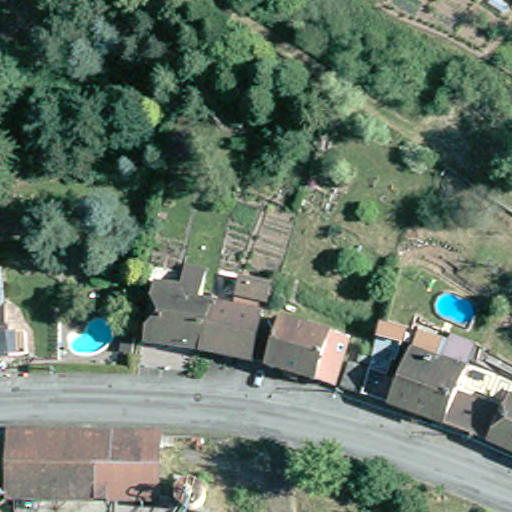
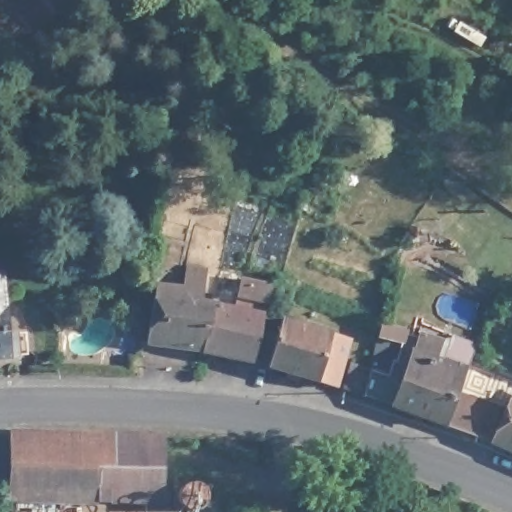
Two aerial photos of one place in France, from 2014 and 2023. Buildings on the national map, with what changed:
unchanged [(1,272),(5,334),(25,333),(27,354),(7,356),(0,357),(0,272),(1,272)]
unchanged [(239,283),(256,287),(258,278),(274,280),(261,356),(208,348),(208,345),(214,298),(236,301),(239,283)]
unchanged [(154,337),(161,281),(204,288),(203,296),(214,298),(208,345),(154,337)]
unchanged [(289,315),(354,334),(341,380),(264,357),(272,327),(284,330),(289,315)]
unchanged [(477,434),(464,429),(409,410),(397,406),(379,399),(364,394),(366,388),(372,371),(386,375),(387,371),(394,341),(419,350),(429,354),(450,362),(448,368),(454,370),(462,350),(487,359),(474,396),(485,400),(501,407),(512,411),(512,450),(487,439),(477,434)]
unchanged [(17,436),(165,437),(164,501),(18,497),(17,436)]
unchanged [(180,503),(178,499),(178,495),(179,491),(181,487),(183,484),(186,482),(190,480),(194,480),(198,481),(199,481),(203,483),(206,486),(208,489),(208,493),(208,497),(208,501),(206,504),(203,507),(199,509),(195,510),(191,510),(188,509),(186,509),(183,506),(180,503)]

